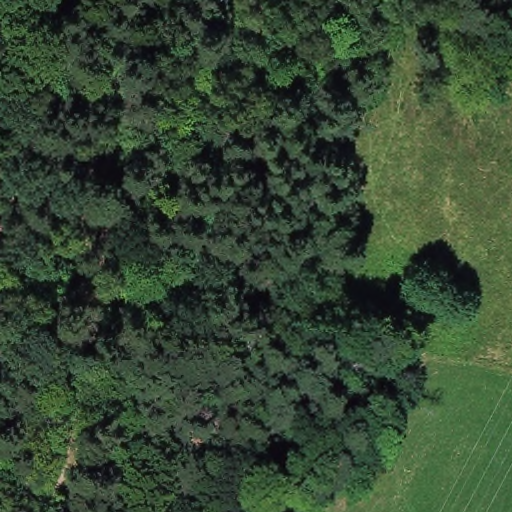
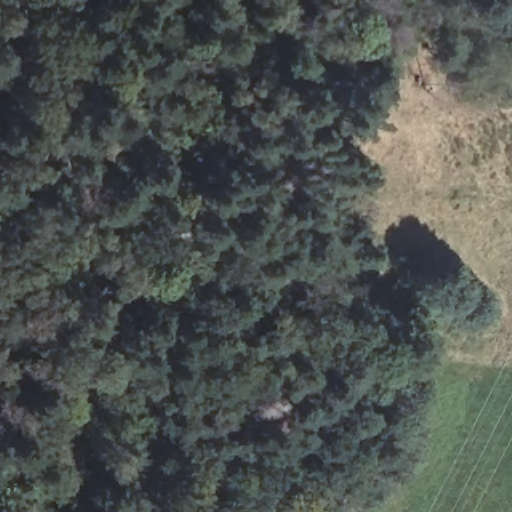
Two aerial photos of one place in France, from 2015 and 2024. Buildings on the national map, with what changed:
[]

